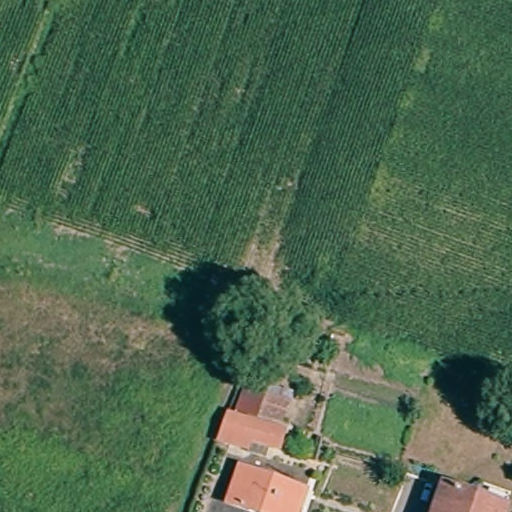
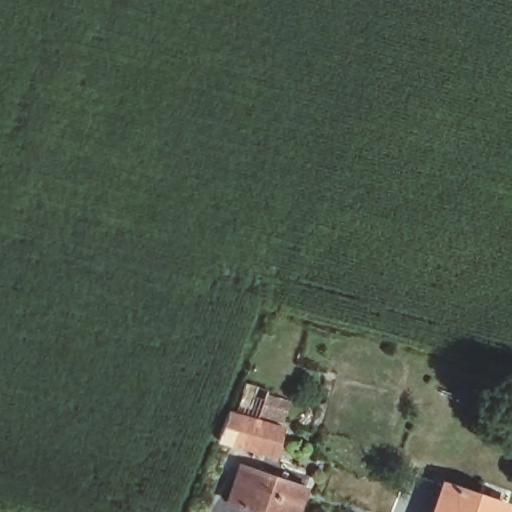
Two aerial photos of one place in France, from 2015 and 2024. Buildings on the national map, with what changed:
unchanged [(277,393),(269,417),(251,412),(247,417),(231,410),(241,382),(277,393)]
unchanged [(276,430),(269,451),(226,437),(234,417),(276,430)]
unchanged [(302,487),(294,512),(258,512),(227,501),(239,466),(302,487)]
unchanged [(442,487),(507,507),(505,512),(433,512),(442,487)]

